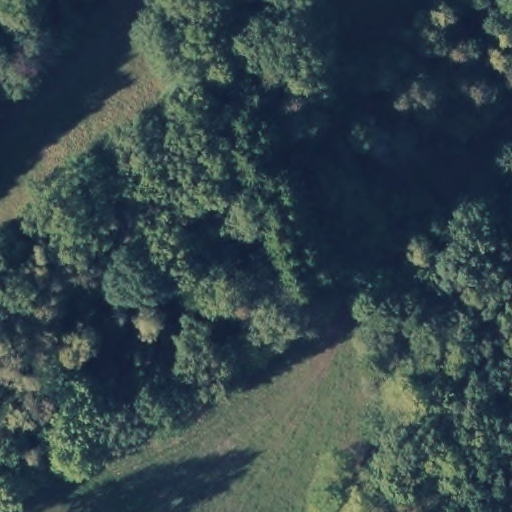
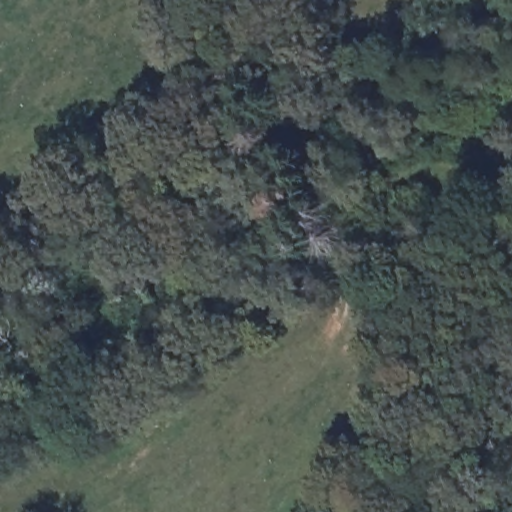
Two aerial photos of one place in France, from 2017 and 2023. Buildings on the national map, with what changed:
unchanged [(101,268),(109,281),(90,294),(84,281),(101,268)]

